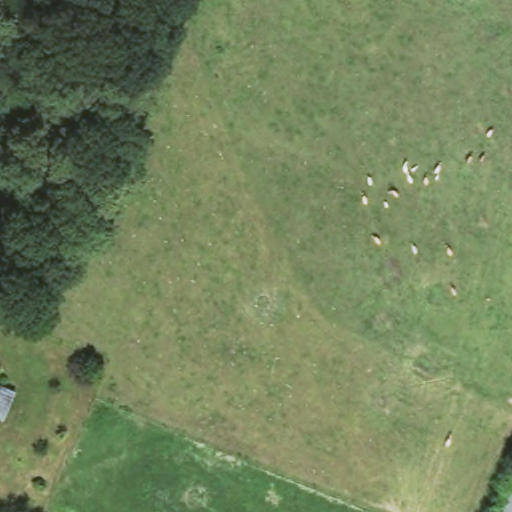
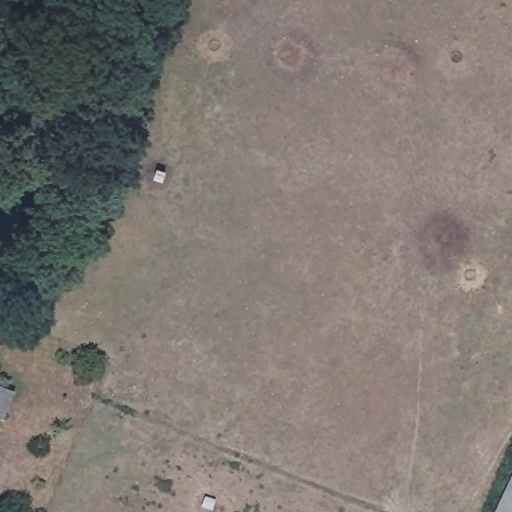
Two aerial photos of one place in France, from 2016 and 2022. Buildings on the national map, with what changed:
unchanged [(512,486),(512,512),(500,512),(512,486)]

